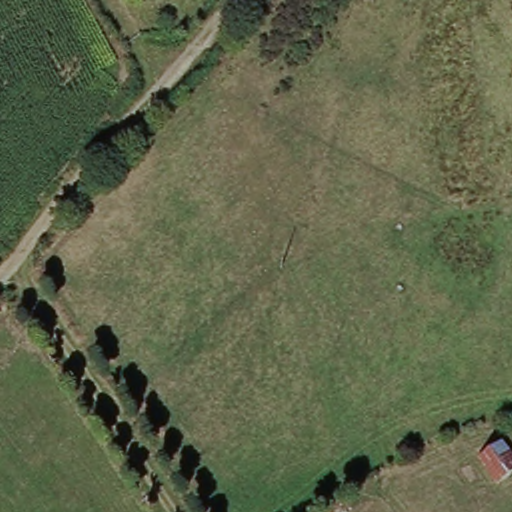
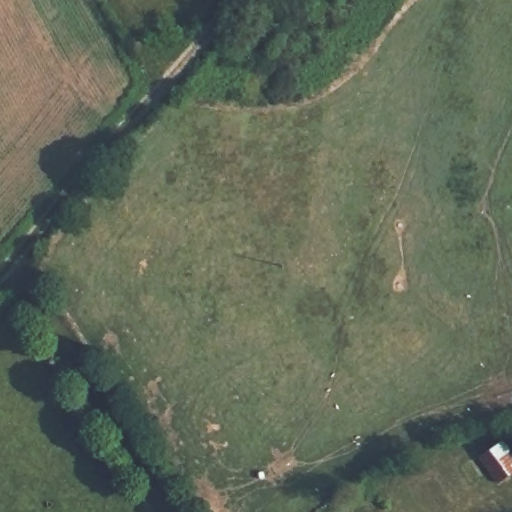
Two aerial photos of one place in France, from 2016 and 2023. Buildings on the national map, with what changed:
unchanged [(512,487),(503,492),(485,461),(512,446),(512,487)]

